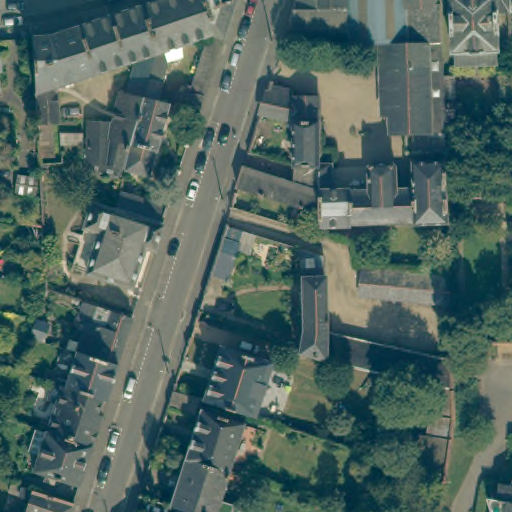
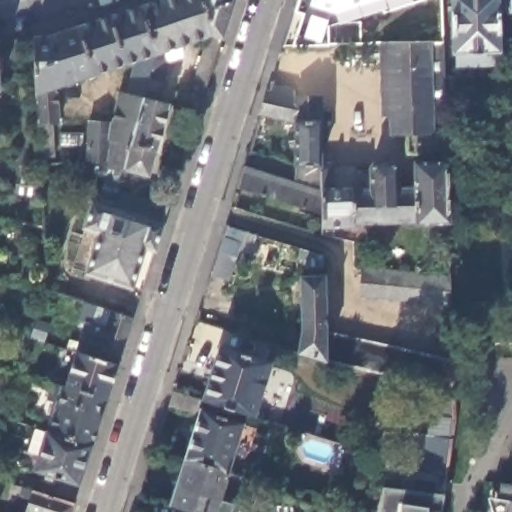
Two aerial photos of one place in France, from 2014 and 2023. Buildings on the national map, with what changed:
unchanged [(172,123),(175,106),(172,105),(175,92),(183,93),(185,84),(190,86),(205,37),(180,46),(180,55),(176,59),(165,63),(155,102),(142,100),(150,71),(153,58),(137,9),(162,0),(202,0),(209,35),(221,38),(200,104),(199,110),(193,127),(172,123)]
unchanged [(221,38),(209,35),(202,0),(233,0),(221,38)]
unchanged [(388,39),(343,40),(338,40),(281,41),(294,0),(407,0),(408,38),(388,39)]
unchanged [(407,0),(441,0),(442,37),(408,38),(407,0)]
unchanged [(454,50),(452,50),(451,0),(510,0),(510,8),(510,10),(499,10),(500,48),(497,48),(497,62),(455,63),(454,50)]
unchanged [(510,8),(510,0),(512,0),(512,8),(510,8)]
unchanged [(36,125),(31,39),(49,39),(137,9),(153,58),(150,71),(142,100),(125,169),(124,171),(86,160),(88,123),(111,124),(119,93),(125,95),(134,61),(50,88),(55,93),(56,124),(50,124),(50,156),(37,157),(36,125)]
unchanged [(445,147),(407,147),(406,128),(391,128),(388,39),(408,38),(442,37),(443,63),(445,147)]
unchanged [(295,98),(320,98),(320,122),(295,122),(260,115),(267,92),(295,98)]
unchanged [(155,102),(167,105),(155,152),(154,152),(146,176),(125,169),(142,100),(155,102)]
unchanged [(320,126),(321,163),(321,166),(293,166),(295,122),(320,122),(320,126)]
unchanged [(322,235),(322,227),(322,226),(322,215),(321,166),(321,163),(333,163),(334,190),(350,189),(351,192),(370,191),(370,169),(374,164),(391,163),(395,167),(396,190),(414,190),(413,163),(446,162),(447,199),(447,222),(447,223),(415,224),(415,221),(351,223),(352,226),(331,226),(331,238),(322,235)]
unchanged [(236,188),(244,167),(293,182),(293,166),(321,166),(322,215),(236,188)]
unchanged [(152,233),(105,218),(109,202),(157,218),(152,233)]
unchanged [(87,285),(62,278),(81,215),(104,221),(87,285)]
unchanged [(144,261),(131,257),(117,295),(87,285),(104,221),(152,235),(144,261)]
unchanged [(283,244),(278,258),(235,244),(239,230),(283,244)]
unchanged [(301,329),(298,249),(323,257),(325,332),(325,361),(298,353),(301,329)]
unchanged [(358,297),(361,268),(450,278),(450,306),(358,297)]
unchanged [(117,361),(75,348),(85,317),(92,320),(98,302),(132,314),(117,361)]
unchanged [(325,332),(451,359),(452,390),(385,375),(325,361),(325,332)]
unchanged [(249,416),(198,400),(215,347),(265,363),(249,416)]
unchanged [(106,397),(101,395),(64,382),(64,381),(75,348),(117,361),(106,397)]
unchanged [(92,441),(46,427),(55,397),(47,394),(53,378),(64,381),(64,382),(101,395),(96,410),(101,412),(92,441)]
unchanged [(194,399),(189,414),(163,407),(168,391),(194,399)]
unchanged [(223,472),(180,459),(196,409),(239,422),(226,463),(239,467),(236,476),(223,472)]
unchanged [(79,482),(34,467),(46,427),(92,441),(79,482)]
unchanged [(418,434),(450,438),(444,478),(443,477),(413,467),(418,434)]
unchanged [(165,505),(180,459),(223,472),(214,500),(228,504),(227,506),(241,510),(241,512),(187,512),(179,510),(165,505)]
new [(398,488),(400,481),(391,480),(395,461),(412,467),(416,468),(413,490),(441,494),(439,512),(377,512),(381,485),(398,488)]
unchanged [(512,485),(512,512),(493,512),(497,483),(498,483),(512,485)]
unchanged [(32,495),(74,508),(73,512),(26,512),(29,504),(20,501),(22,493),(32,496),(32,495)]
unchanged [(187,512),(178,512),(179,510),(187,512)]

